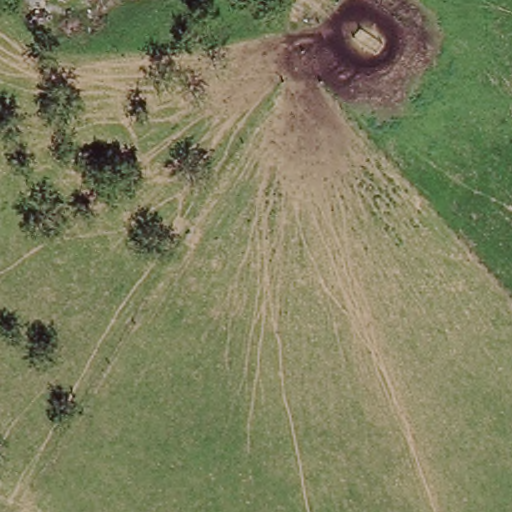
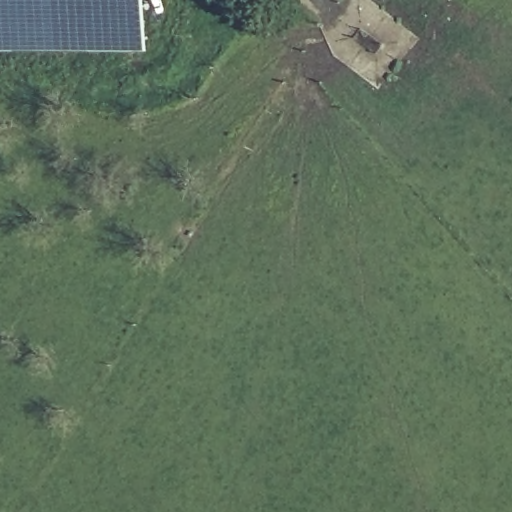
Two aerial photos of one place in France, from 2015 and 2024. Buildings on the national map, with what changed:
new [(151,40),(0,41),(0,0),(151,0),(151,40)]

